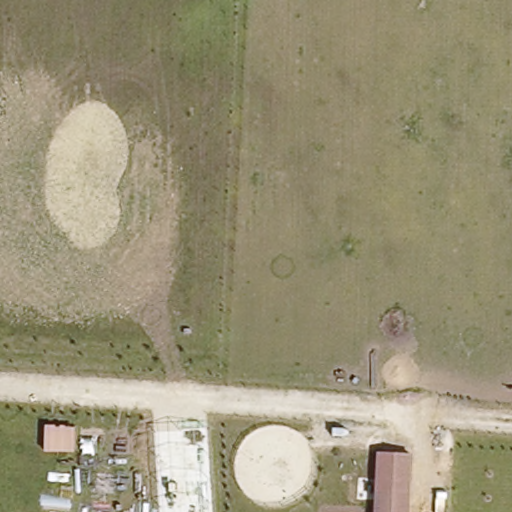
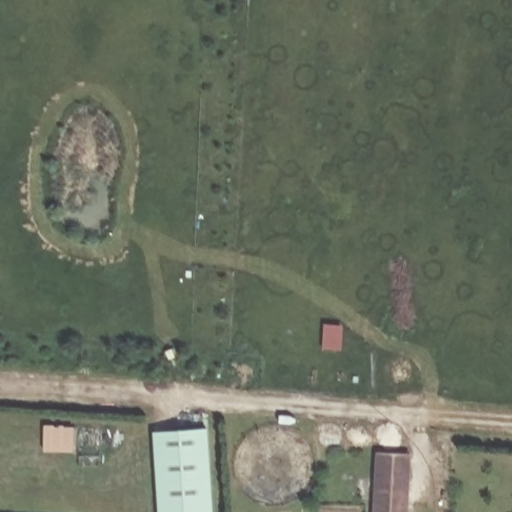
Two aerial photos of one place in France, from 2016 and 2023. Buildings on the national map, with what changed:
new [(206,428),(212,512),(158,512),(154,432),(206,428)]
unchanged [(407,512),(373,512),(378,453),(411,455),(407,512)]

